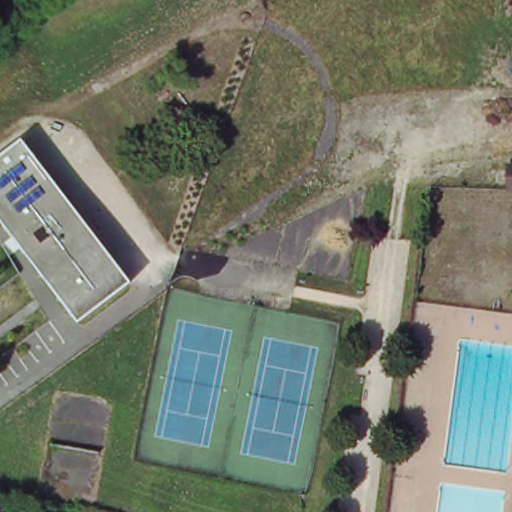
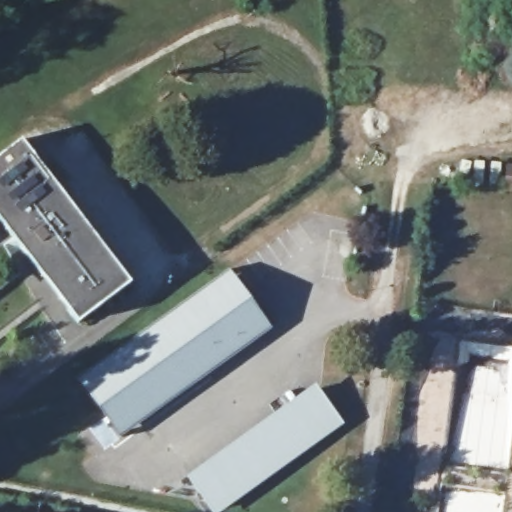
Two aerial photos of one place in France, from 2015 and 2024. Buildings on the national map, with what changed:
unchanged [(131,282),(79,324),(0,216),(0,158),(25,139),(131,282)]
new [(80,382),(232,274),(271,327),(118,434),(80,382)]
new [(189,476),(311,390),(333,423),(215,510),(189,476)]

